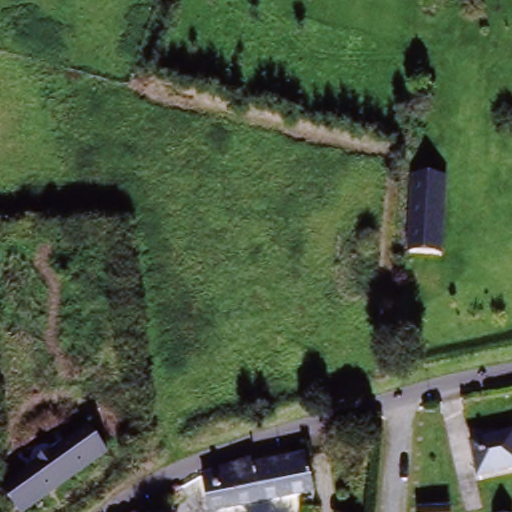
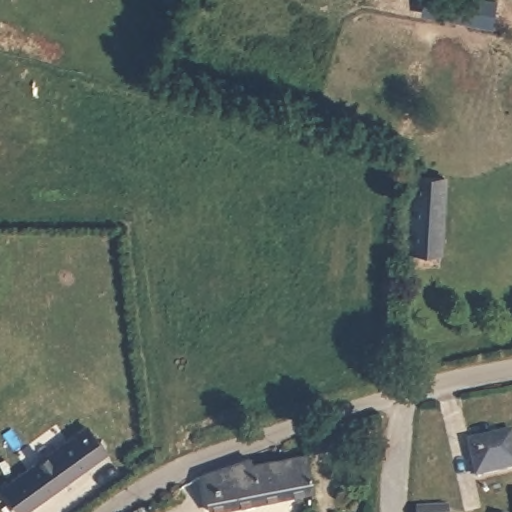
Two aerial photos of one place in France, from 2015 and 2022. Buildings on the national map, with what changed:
unchanged [(445,179),(445,255),(408,254),(416,179),(445,179)]
unchanged [(0,488),(90,425),(110,450),(22,512),(8,512),(0,500),(0,488)]
unchanged [(472,443),(512,433),(512,468),(480,475),(472,443)]
unchanged [(245,477),(297,466),(305,465),(310,463),(317,490),(309,491),(302,493),(251,506),(226,512),(215,512),(205,475),(210,473),(230,469),(242,466),(245,477)]
unchanged [(417,512),(416,510),(453,507),(454,512),(417,512)]

